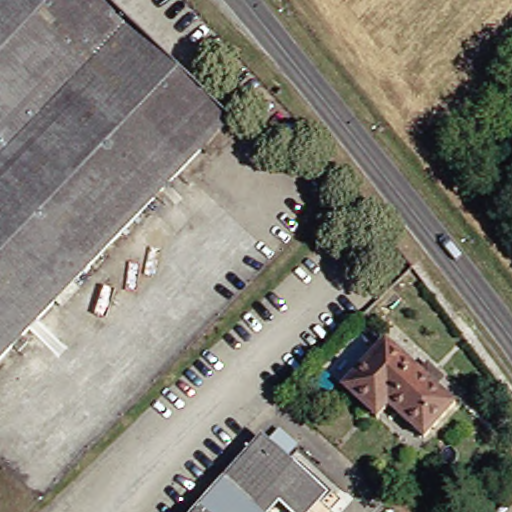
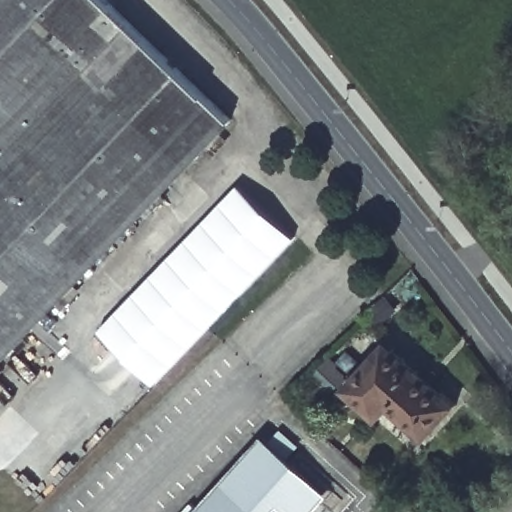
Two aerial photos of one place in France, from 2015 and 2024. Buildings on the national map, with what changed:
unchanged [(16,342),(22,348),(12,357),(7,351),(0,358),(0,0),(98,0),(225,121),(16,342)]
new [(156,383),(100,329),(241,184),(298,238),(156,383)]
unchanged [(352,386),(378,409),(366,421),(333,390),(380,339),(388,347),(352,386)]
unchanged [(421,362),(438,377),(431,385),(449,401),(417,436),(382,405),(378,409),(352,386),(388,347),(413,369),(421,362)]
new [(262,432),(331,494),(314,512),(289,512),(310,489),(255,439),(262,432)]
unchanged [(310,489),(289,512),(283,512),(268,499),(256,512),(189,512),(255,439),(310,489)]
new [(268,499),(283,512),(256,512),(268,499)]

